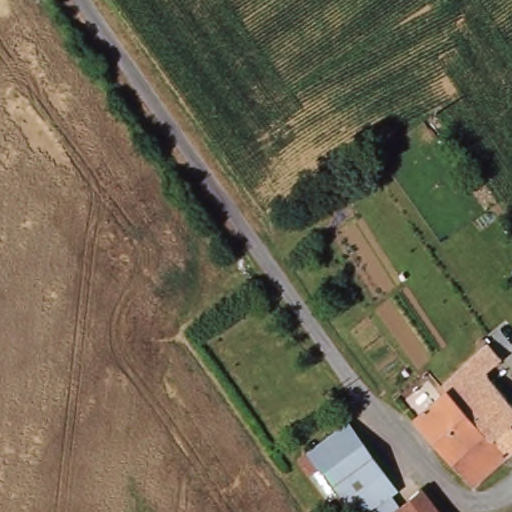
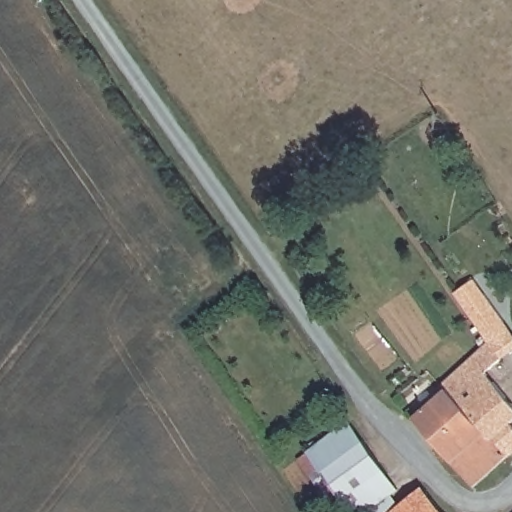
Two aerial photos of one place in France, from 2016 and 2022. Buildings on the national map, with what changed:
new [(488,371),(473,355),(488,342),(454,294),(474,279),(512,334),(512,352),(488,371)]
unchanged [(442,380),(471,353),(493,378),(512,400),(512,414),(492,435),(447,385),(442,380)]
unchanged [(413,414),(447,385),(492,435),(507,451),(472,484),(413,414)]
unchanged [(328,476),(317,482),(298,453),(349,417),(393,480),(369,502),(358,512),(354,512),(328,476)]
unchanged [(444,512),(406,512),(394,495),(374,509),(369,502),(393,480),(412,467),(444,512)]
unchanged [(374,509),(394,495),(406,512),(377,512),(374,509)]

